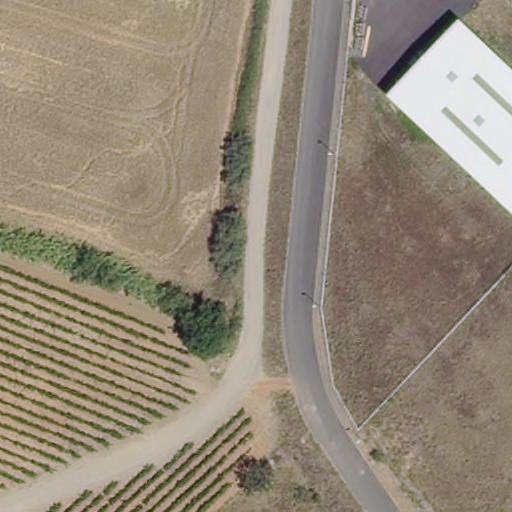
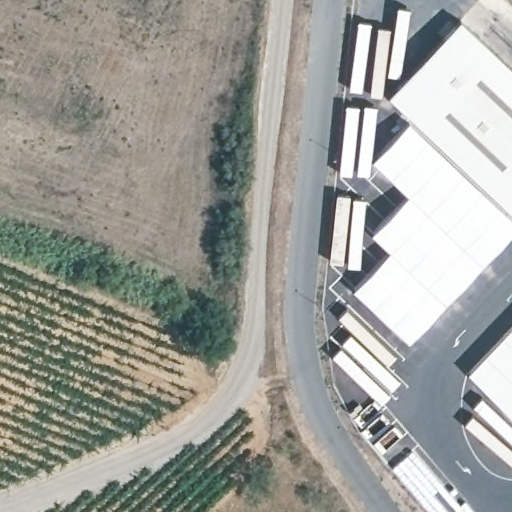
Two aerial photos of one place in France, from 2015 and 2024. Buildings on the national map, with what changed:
unchanged [(512,216),(385,96),(461,19),(512,67),(512,216)]
new [(512,231),(409,340),(353,288),(389,249),(371,232),(407,193),(371,158),(409,119),(512,217),(512,231)]
new [(512,416),(467,371),(512,324),(512,416)]

